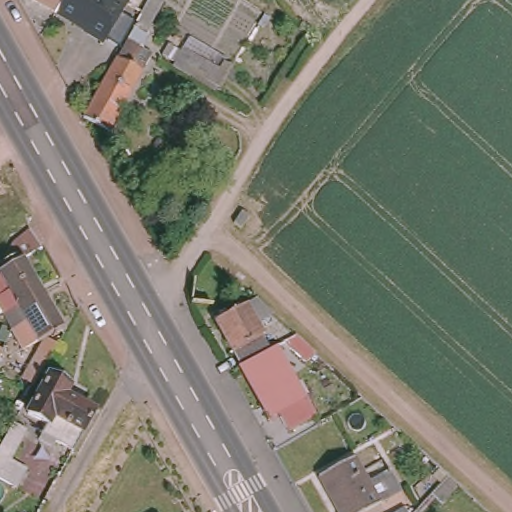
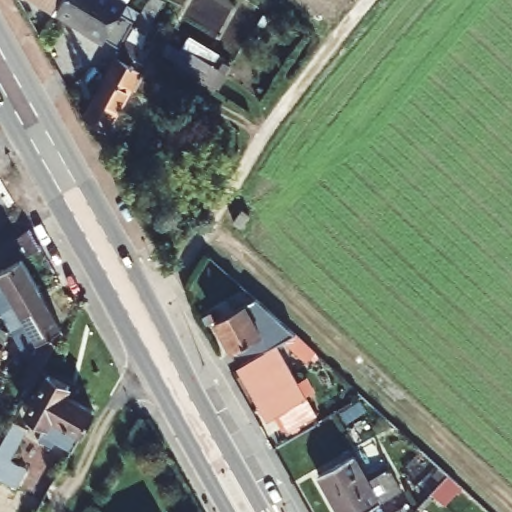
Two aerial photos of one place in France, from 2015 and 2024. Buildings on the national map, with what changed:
unchanged [(47,0),(60,0),(57,6),(47,0)]
unchanged [(60,0),(128,0),(108,35),(57,6),(60,0)]
unchanged [(217,84),(200,74),(175,59),(182,45),(208,60),(225,70),(217,84)]
unchanged [(122,46),(145,60),(100,138),(78,123),(122,46)]
unchanged [(50,286),(8,312),(0,297),(0,272),(0,271),(31,253),(50,286)]
unchanged [(67,320),(24,344),(15,326),(8,312),(50,286),(67,320)]
unchanged [(240,312),(253,303),(270,318),(252,329),(267,354),(238,373),(213,329),(240,312)]
unchanged [(292,339),(317,361),(306,370),(282,345),(292,339)]
unchanged [(238,373),(267,354),(275,349),(315,414),(287,432),(275,413),(265,417),(238,373)]
unchanged [(47,441),(37,435),(45,418),(26,408),(47,369),(66,379),(60,391),(88,408),(68,447),(50,435),(47,441)]
unchanged [(15,381),(10,391),(0,385),(0,372),(15,381)]
unchanged [(4,422),(17,431),(2,460),(17,469),(8,486),(0,482),(0,429),(4,422)]
unchanged [(366,512),(341,512),(322,481),(355,461),(370,483),(389,472),(401,491),(366,512)]

